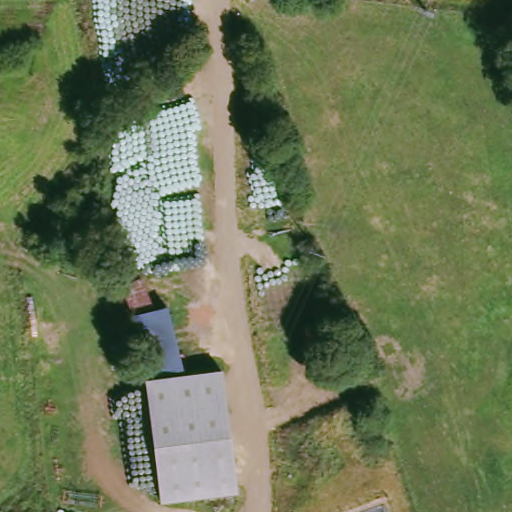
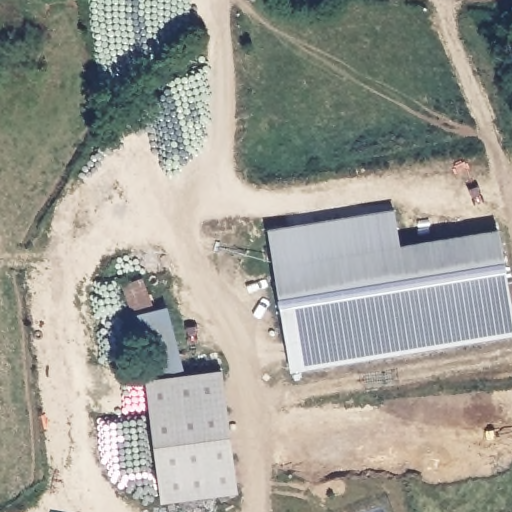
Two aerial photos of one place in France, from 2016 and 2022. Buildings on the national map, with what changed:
new [(269,227),(394,208),(399,244),(499,228),(512,311),(512,336),(290,370),(269,227)]
unchanged [(151,380),(148,373),(131,315),(121,285),(143,279),(154,310),(166,307),(183,373),(151,380)]
unchanged [(161,506),(153,440),(145,373),(148,373),(151,380),(183,373),(223,365),(231,434),(239,493),(161,506)]

